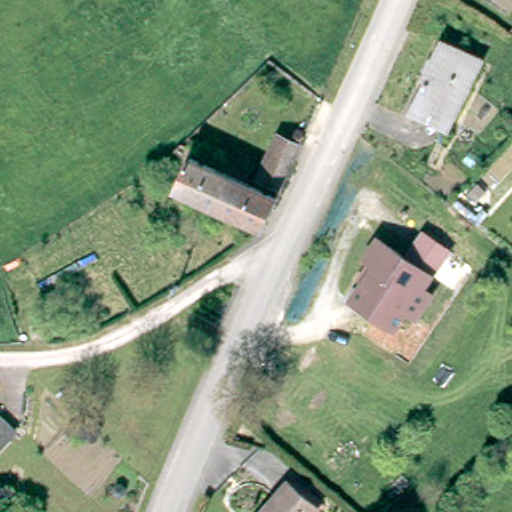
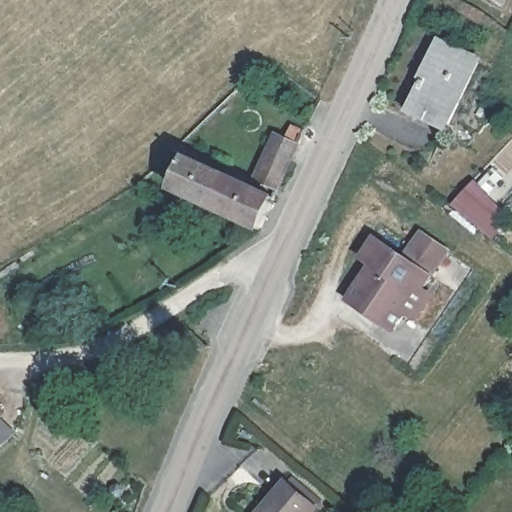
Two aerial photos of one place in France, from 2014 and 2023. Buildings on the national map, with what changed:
unchanged [(426,80),(420,76),(425,68),(437,44),(460,55),(478,63),(447,123),(436,117),(412,105),(426,80)]
unchanged [(252,174),(271,130),(288,138),(293,126),(301,130),(276,186),(252,174)]
unchanged [(188,153),(272,195),(257,227),(174,184),(188,153)]
new [(488,196),(482,203),(494,214),(480,228),(453,205),(474,183),(488,196)]
unchanged [(422,236),(450,254),(432,278),(406,258),(422,236)]
unchanged [(366,277),(369,279),(375,271),(373,269),(376,265),(366,257),(380,239),(432,278),(422,291),(431,298),(413,320),(405,313),(391,331),(350,299),(366,277)]
unchanged [(184,319),(191,328),(183,336),(175,327),(184,319)]
unchanged [(10,436),(0,448),(0,427),(10,436)]
unchanged [(281,485),(286,479),(316,508),(312,512),(255,512),(281,485)]

